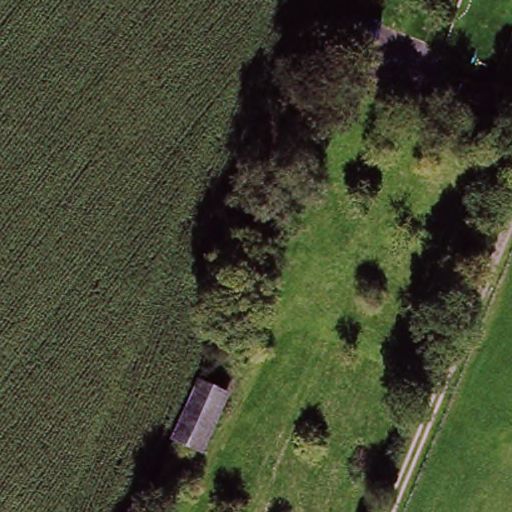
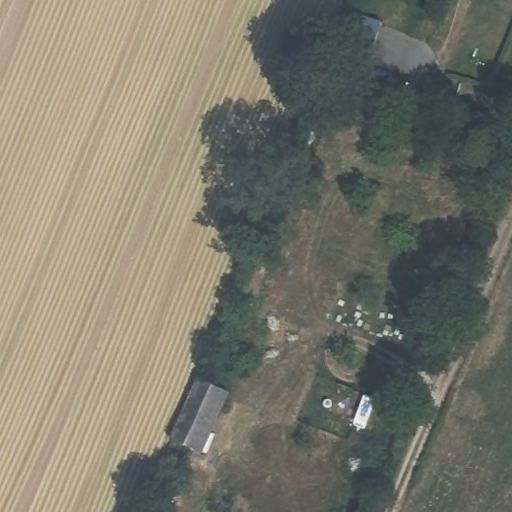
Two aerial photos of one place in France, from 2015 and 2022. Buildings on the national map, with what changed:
unchanged [(367,60),(343,54),(356,14),(381,21),(367,60)]
unchanged [(181,446),(177,445),(203,384),(230,395),(205,456),(181,446)]

